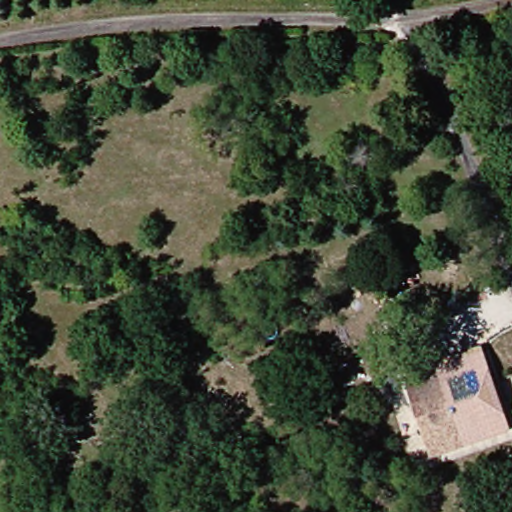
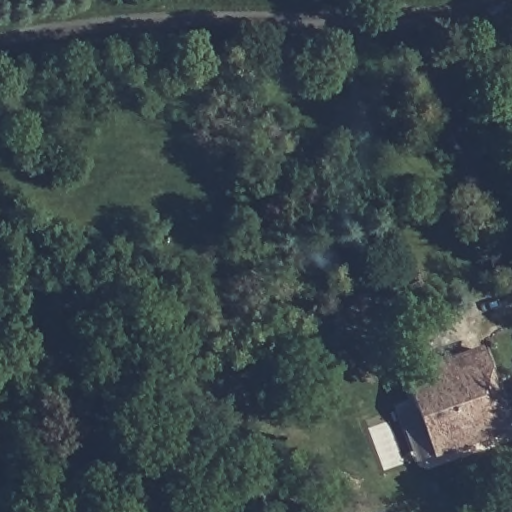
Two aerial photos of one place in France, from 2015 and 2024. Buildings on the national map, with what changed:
unchanged [(439,457),(405,381),(481,346),(495,376),(507,402),(512,414),(512,422),(439,457)]

